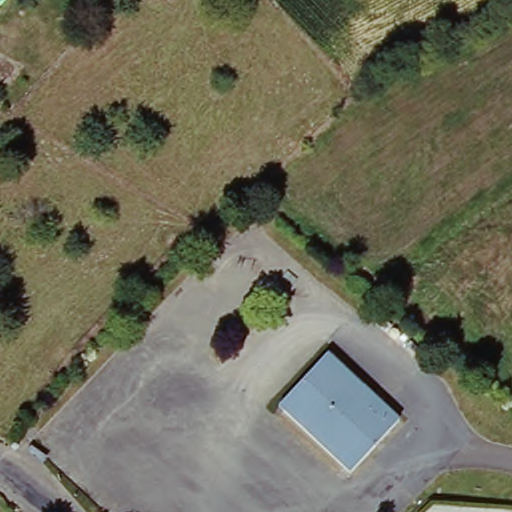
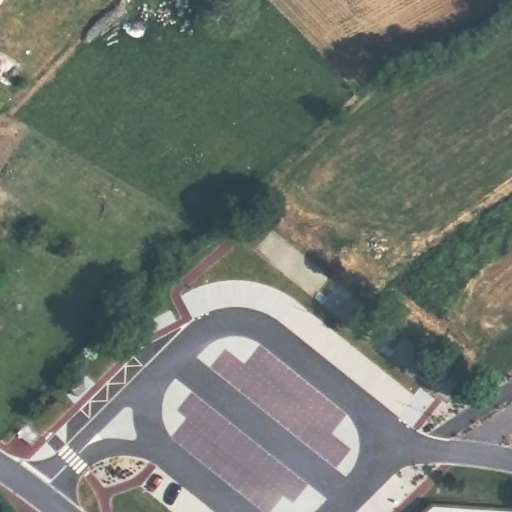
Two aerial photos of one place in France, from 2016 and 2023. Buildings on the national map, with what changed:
demolished [(403,421),(357,475),(282,406),(306,379),(329,354),(334,359),(339,363),(403,421)]

